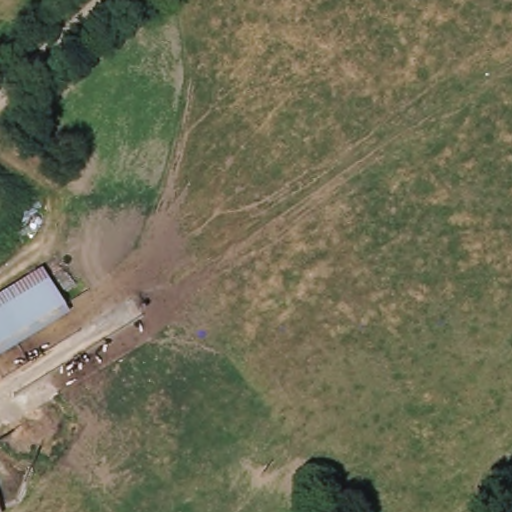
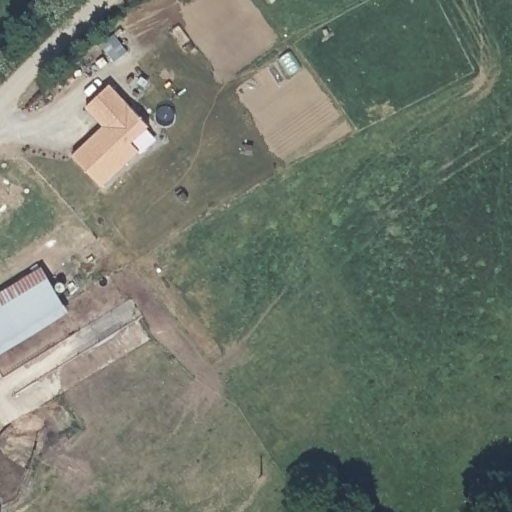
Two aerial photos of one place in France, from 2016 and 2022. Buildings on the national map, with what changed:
new [(74,155),(104,127),(86,107),(111,84),(149,126),(131,142),(140,151),(104,186),(74,155)]
unchanged [(0,344),(0,297),(43,272),(64,308),(0,344)]
unchanged [(71,320),(0,359),(0,344),(64,308),(71,320)]

